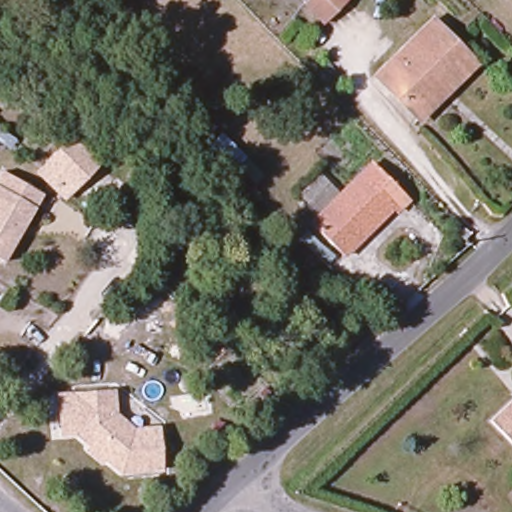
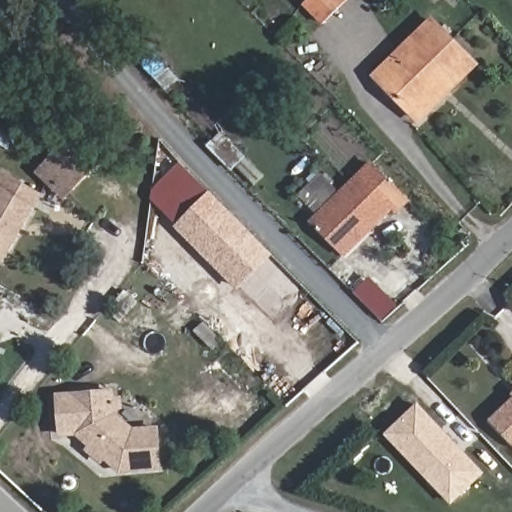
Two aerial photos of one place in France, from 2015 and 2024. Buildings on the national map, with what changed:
unchanged [(346,3),(321,30),(298,9),(307,0),(348,0),(346,3)]
unchanged [(437,101),(416,123),(375,82),(431,25),(461,56),(472,67),(437,101)]
unchanged [(35,172),(75,131),(104,158),(64,200),(35,172)]
unchanged [(4,148),(0,153),(0,146),(4,148)]
new [(175,226),(151,201),(154,191),(180,163),(210,192),(272,255),(237,291),(175,226)]
unchanged [(342,261),(310,229),(368,169),(401,201),(342,261)]
unchanged [(0,264),(0,177),(39,200),(0,264)]
new [(382,321),(353,292),(371,276),(398,305),(382,321)]
unchanged [(161,470),(120,474),(79,436),(61,438),(57,393),(117,390),(122,415),(136,426),(161,426),(161,470)]
unchanged [(512,393),(512,400),(508,397),(512,393)]
new [(450,506),(383,434),(417,401),(485,475),(450,506)]
unchanged [(512,403),(512,446),(492,423),(512,403)]

